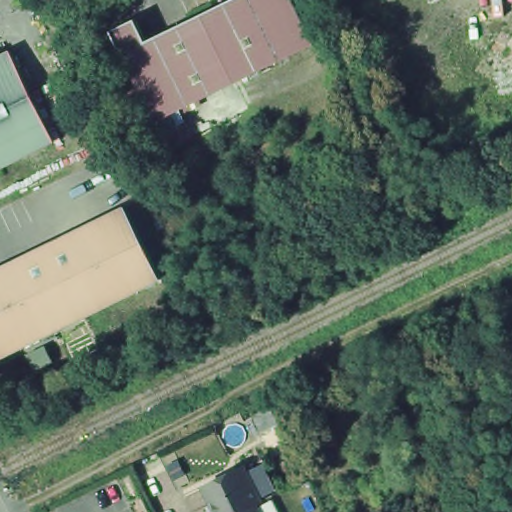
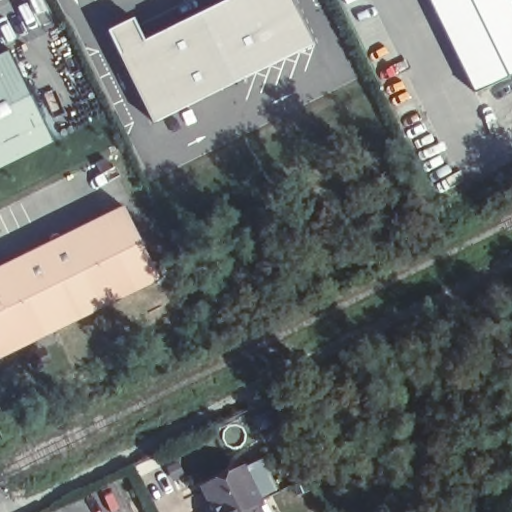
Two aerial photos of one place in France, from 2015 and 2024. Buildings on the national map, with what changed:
unchanged [(231,0),(288,0),(310,47),(231,85),(198,16),(231,0)]
new [(432,0),(512,0),(512,83),(482,98),(432,0)]
unchanged [(120,54),(119,54),(108,32),(125,23),(127,27),(135,32),(136,34),(138,33),(143,42),(198,16),(231,85),(153,123),(120,54)]
unchanged [(7,56),(51,147),(0,172),(0,60),(7,56)]
unchanged [(158,282),(0,357),(0,267),(122,208),(158,282)]
unchanged [(227,511),(220,495),(216,497),(207,479),(248,459),(265,493),(260,496),(267,512),(226,512),(227,511)]

